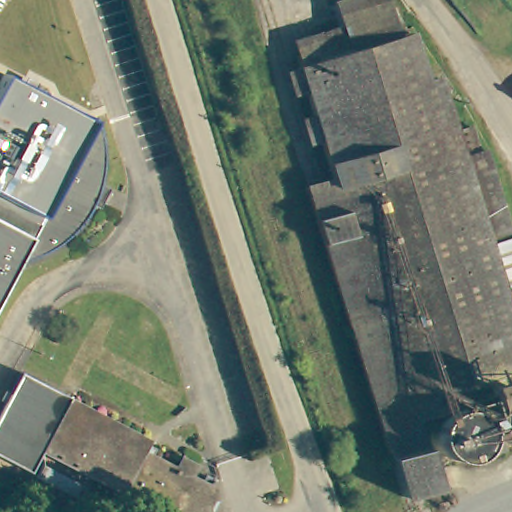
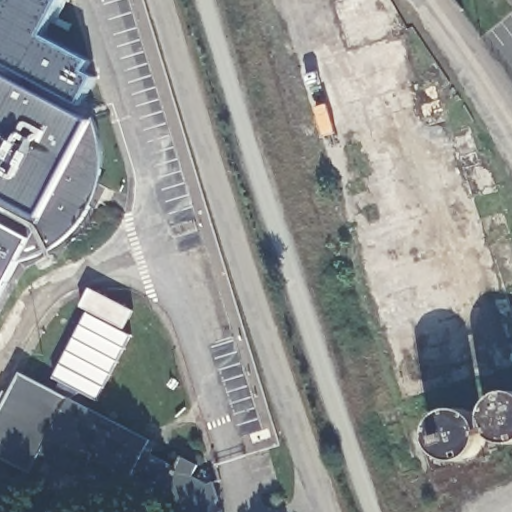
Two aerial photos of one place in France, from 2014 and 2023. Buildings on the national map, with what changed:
demolished [(319,60),(329,57),(350,50),(344,24),(338,1),(344,0),(389,0),(401,34),(411,31),(427,79),(438,75),(455,132),(475,126),(482,149),(487,147),(512,232),(512,247),(493,252),(512,319),(512,370),(502,372),(440,391),(405,401),(338,172),(306,64),(319,60)]
unchanged [(39,217),(95,117),(96,121),(100,133),(103,146),(104,158),(103,171),(100,184),(96,196),(90,208),(83,218),(74,228),(64,237),(20,259),(0,296),(0,197),(39,217)]
demolished [(512,247),(512,319),(493,252),(512,247)]
unchanged [(148,451),(176,465),(180,456),(199,466),(194,475),(214,485),(219,506),(208,508),(208,512),(159,512),(43,453),(32,469),(0,453),(0,415),(21,374),(152,442),(148,451)]
unchanged [(501,442),(496,438),(492,433),(489,427),(487,420),(488,414),(490,407),(494,402),(498,397),(504,394),(508,393),(512,392),(512,446),(508,445),(501,442)]
unchanged [(453,409),(459,408),(466,410),(472,412),(477,417),(481,422),(483,428),(484,435),(483,441),(480,448),(476,453),(471,457),(465,460),(457,461),(450,460),(444,457),(439,453),(435,447),(433,441),(432,435),(432,428),(435,422),(439,417),(444,412),(450,410),(453,409)]

